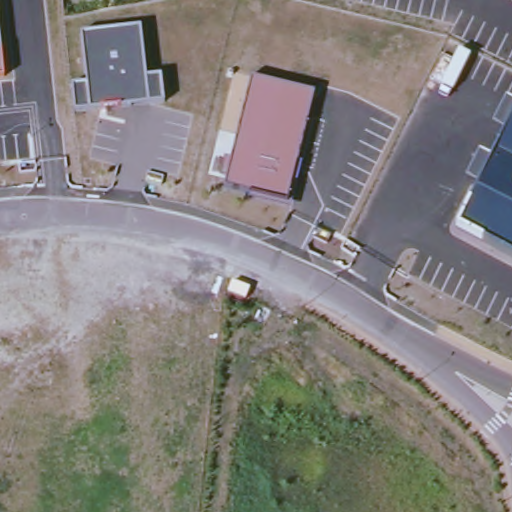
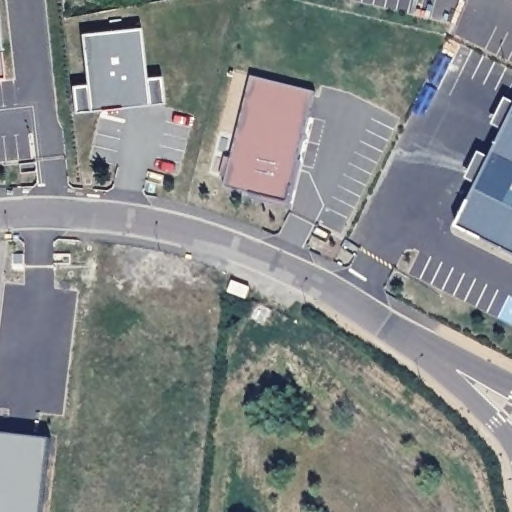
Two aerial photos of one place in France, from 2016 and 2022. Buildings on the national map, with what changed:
unchanged [(90,107),(80,33),(139,26),(148,100),(90,107)]
unchanged [(0,76),(0,43),(4,75),(0,76)]
unchanged [(315,93),(287,201),(225,187),(252,79),(315,93)]
unchanged [(457,227),(512,118),(512,254),(457,227)]
new [(41,512),(0,512),(0,434),(49,439),(41,512)]

